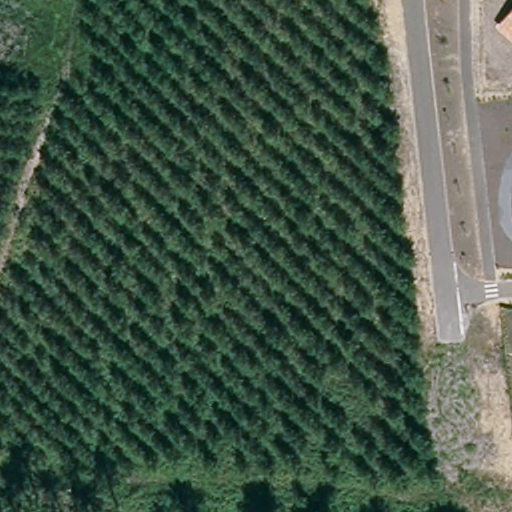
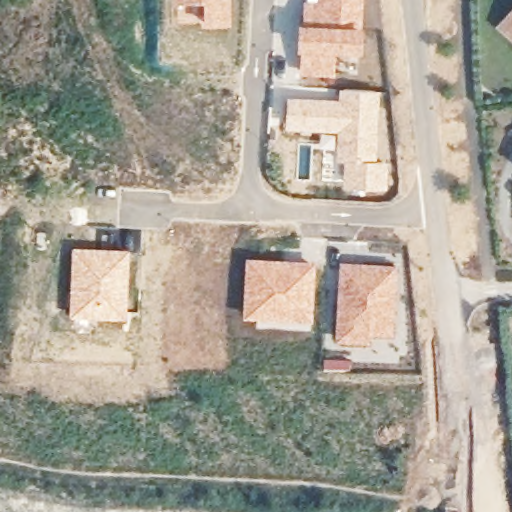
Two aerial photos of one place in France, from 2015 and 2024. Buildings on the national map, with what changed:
new [(231,8),(231,22),(221,22),(221,26),(202,26),(202,4),(170,4),(170,0),(227,0),(227,8),(231,8)]
new [(365,0),(362,55),(336,54),(335,77),(301,75),(302,52),(297,52),(301,1),(318,2),(318,0),(365,0)]
unchanged [(512,8),(512,36),(498,24),(512,8)]
new [(345,155),(337,155),(338,132),(286,129),(287,97),(340,100),(347,90),(380,92),(377,162),(387,163),(386,190),(343,187),(345,155)]
new [(130,250),(127,320),(70,317),(73,247),(130,250)]
new [(313,322),(242,318),(246,257),(317,262),(313,322)]
new [(367,344),(345,334),(339,268),(394,268),(391,333),(367,331),(367,344)]

